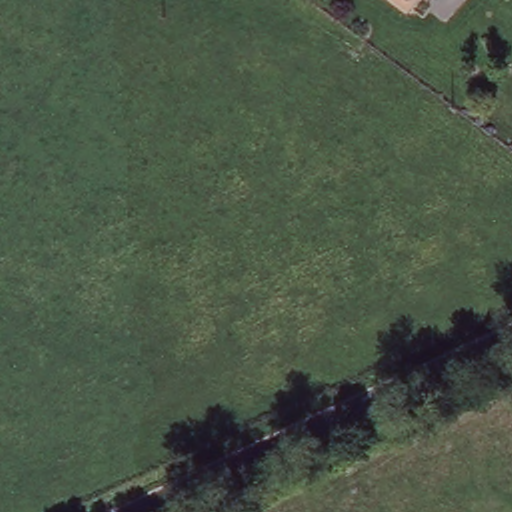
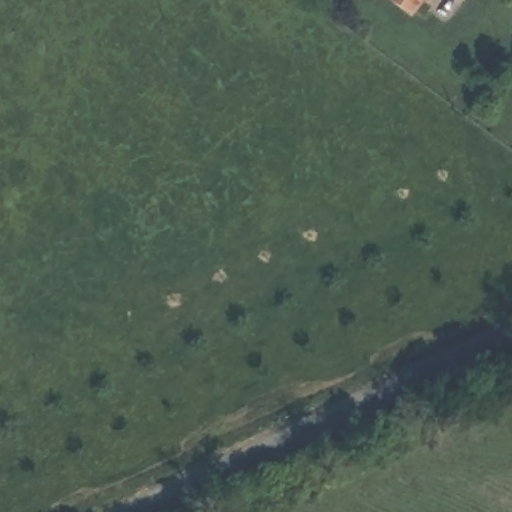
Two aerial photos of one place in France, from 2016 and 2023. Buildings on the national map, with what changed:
unchanged [(410,10),(395,0),(416,0),(410,10)]

